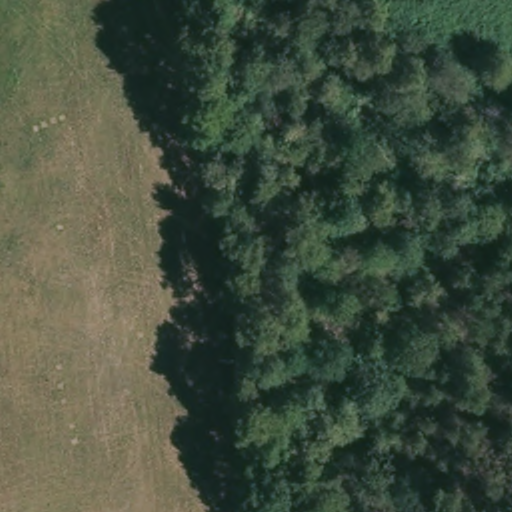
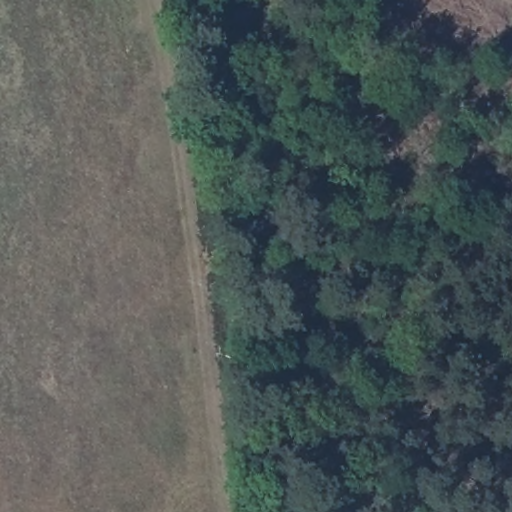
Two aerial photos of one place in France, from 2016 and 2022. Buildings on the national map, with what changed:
[]

